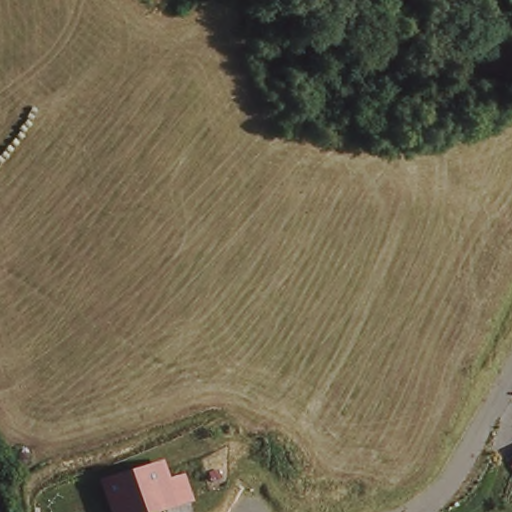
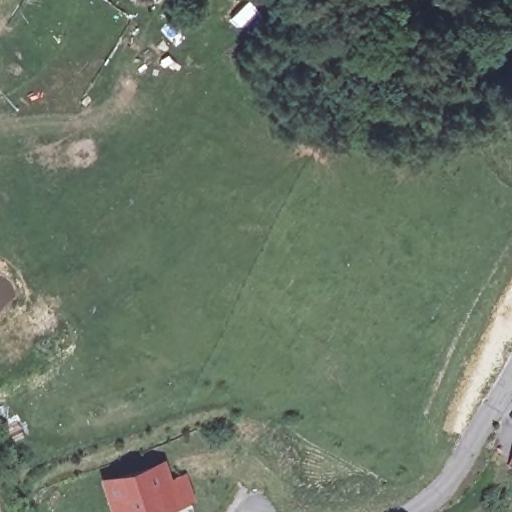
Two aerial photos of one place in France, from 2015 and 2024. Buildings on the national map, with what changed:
unchanged [(166,512),(116,512),(106,479),(161,463),(165,479),(182,475),(187,491),(189,500),(165,507),(166,512)]
unchanged [(511,468),(512,467),(512,469),(511,468)]

